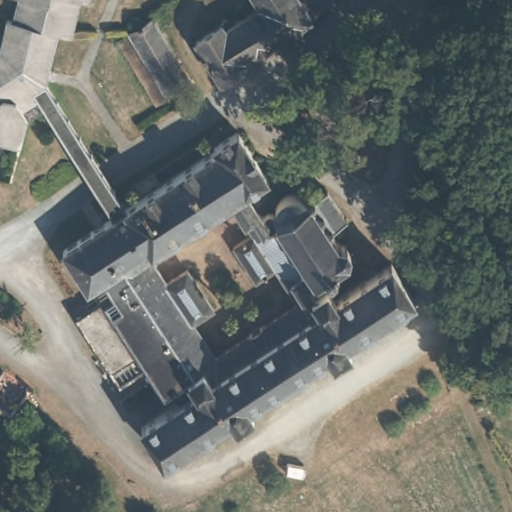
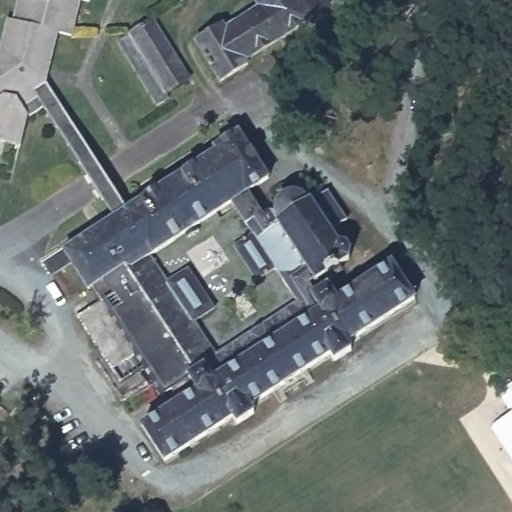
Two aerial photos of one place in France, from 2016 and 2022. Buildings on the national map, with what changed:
unchanged [(88,168),(42,92),(26,98),(20,130),(0,125),(0,10),(1,4),(8,5),(9,0),(73,0),(71,14),(50,11),(45,38),(49,43),(46,64),(105,158),(125,192),(133,205),(220,152),(216,147),(242,132),(273,181),(251,194),(268,218),(309,274),(303,278),(314,291),(328,281),(340,294),(391,261),(416,301),(345,347),(346,352),(332,363),(326,358),(304,372),(305,376),(273,397),(270,393),(245,409),(246,415),(228,424),(225,420),(159,461),(136,424),(172,400),(165,387),(159,390),(134,349),(126,354),(142,382),(115,399),(97,371),(104,366),(76,318),(107,297),(99,283),(92,287),(69,245),(116,215),(109,202),(88,168)]
unchanged [(224,28),(222,24),(229,20),(235,28),(258,8),(253,0),(322,0),(308,12),(312,16),(276,42),(275,40),(251,61),(252,64),(225,83),(197,49),(224,28)]
unchanged [(129,29),(152,13),(195,74),(172,91),(129,29)]
unchanged [(177,97),(163,107),(118,38),(129,29),(172,91),(177,97)]
unchanged [(273,201),(281,191),(291,191),(301,198),(318,186),(339,217),(323,228),(330,236),(340,236),(345,244),(341,255),(335,257),(338,263),(325,271),(320,266),(309,274),(268,218),(275,212),(273,201)]
unchanged [(0,367),(27,388),(7,415),(0,410),(0,367)]
new [(500,390),(512,382),(512,409),(500,390)]
new [(512,412),(512,455),(492,425),(512,412)]

